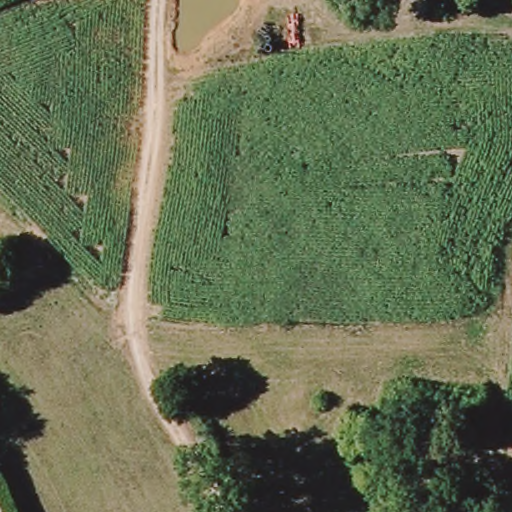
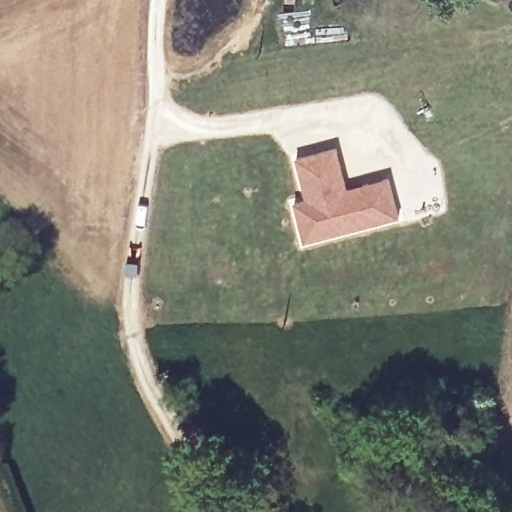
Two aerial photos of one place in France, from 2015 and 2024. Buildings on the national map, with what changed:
new [(308,199),(297,158),(337,147),(347,189),(390,177),(400,217),(306,241),(294,202),(308,199)]

